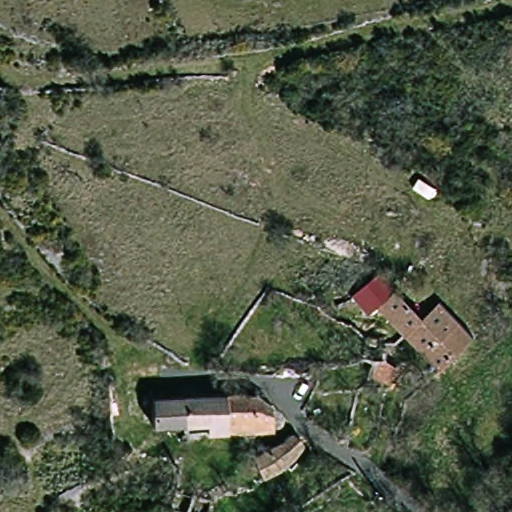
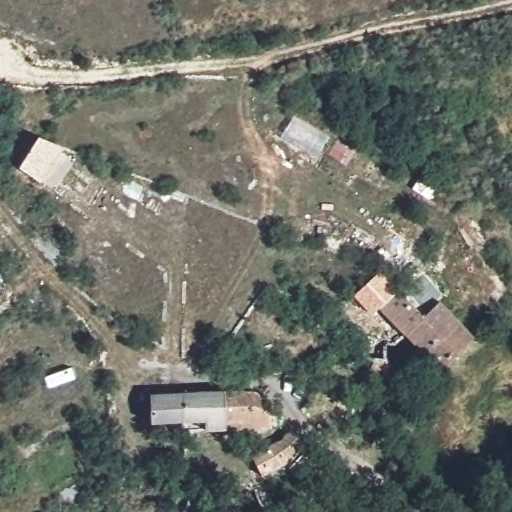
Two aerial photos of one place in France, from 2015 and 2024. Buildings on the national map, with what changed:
new [(18,169),(39,137),(65,149),(40,183),(18,169)]
unchanged [(468,336),(456,347),(455,348),(436,368),(400,330),(378,305),(368,315),(352,296),(381,270),(396,287),(420,311),(433,297),(468,336)]
unchanged [(221,413),(221,428),(205,430),(204,421),(180,422),(148,423),(149,395),(180,394),(221,393),(221,413)]
unchanged [(221,428),(221,413),(221,393),(253,393),(254,393),(270,406),(281,422),(275,426),(221,428)]
unchanged [(293,433),(293,435),(298,438),(300,445),(283,462),(268,473),(251,454),(273,445),(293,433)]

